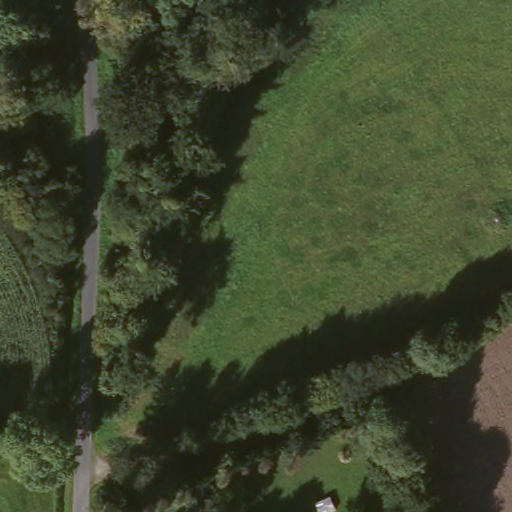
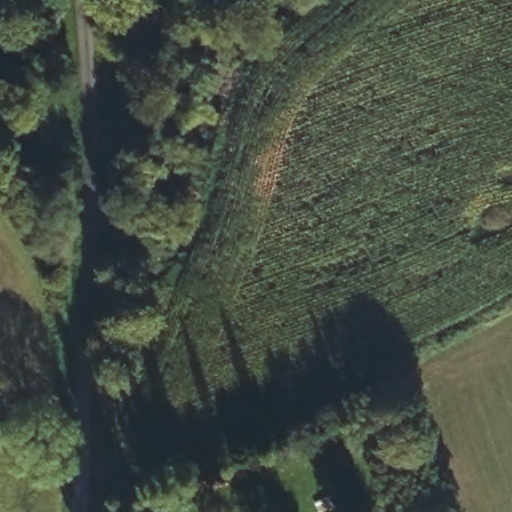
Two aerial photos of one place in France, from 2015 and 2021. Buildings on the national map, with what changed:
[]

